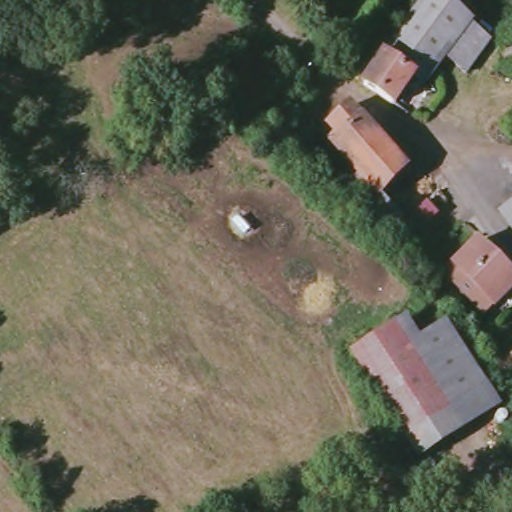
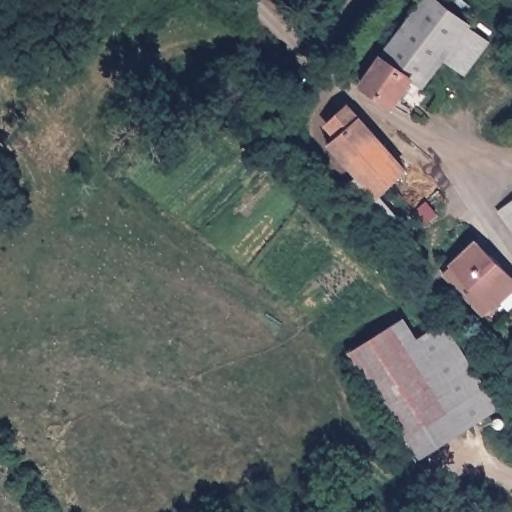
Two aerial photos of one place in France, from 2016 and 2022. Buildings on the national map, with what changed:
unchanged [(412,74),(392,99),(359,80),(418,0),(441,0),(467,24),(477,32),(467,47),(480,60),(475,62),(467,70),(445,52),(421,82),(412,74)]
unchanged [(361,215),(356,210),(337,190),(355,175),(326,145),(335,137),(325,126),(348,107),(351,109),(403,166),(377,191),(382,196),(395,210),(408,223),(386,240),(375,228),(361,215)]
unchanged [(495,208),(512,196),(512,228),(495,208)]
unchanged [(512,272),(512,286),(492,308),(490,305),(480,313),(441,275),(451,266),(449,262),(475,235),(512,272)]
unchanged [(400,315),(415,335),(444,319),(500,407),(413,462),(345,352),(400,315)]
unchanged [(497,359),(512,350),(512,386),(497,359)]

